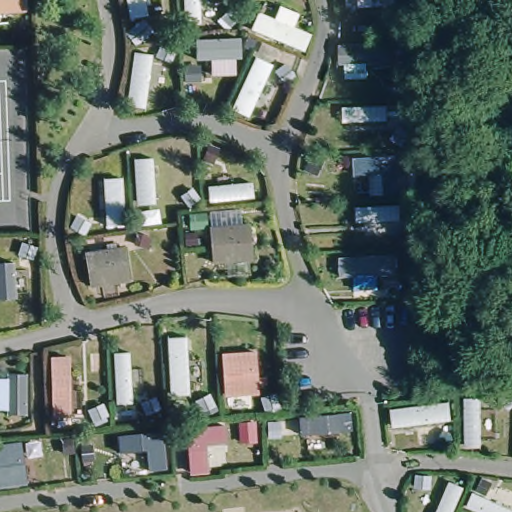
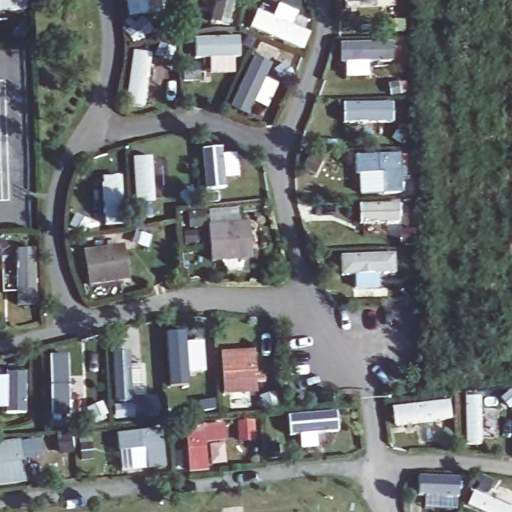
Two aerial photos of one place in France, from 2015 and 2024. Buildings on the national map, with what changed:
unchanged [(253,260),(210,263),(209,227),(251,222),(253,260)]
unchanged [(130,281),(90,288),(85,253),(125,244),(130,281)]
unchanged [(219,355),(255,352),(258,391),(222,393),(219,355)]
unchanged [(0,485),(0,445),(22,443),(29,480),(0,485)]

